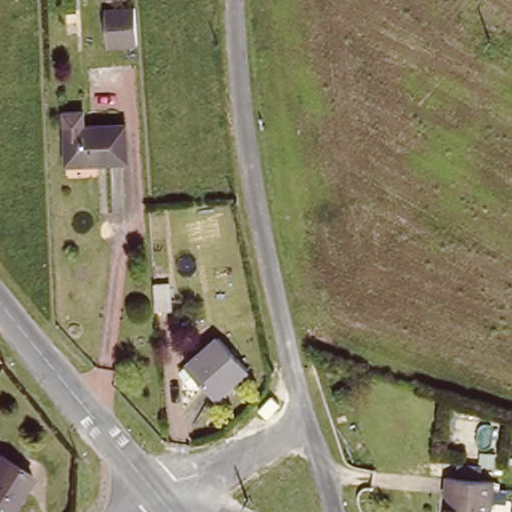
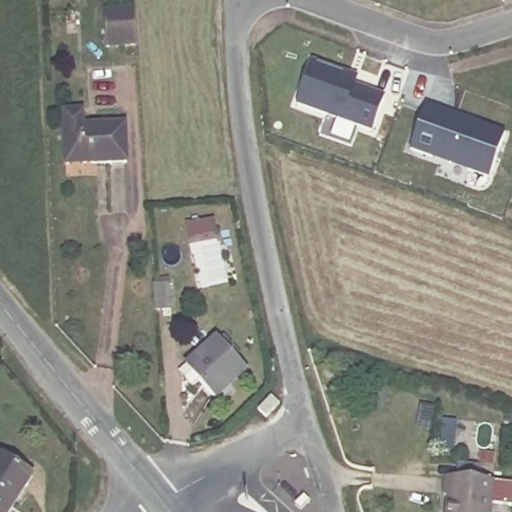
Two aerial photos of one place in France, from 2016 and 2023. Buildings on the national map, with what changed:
unchanged [(110,24),(108,0),(139,0),(141,22),(110,24)]
new [(313,66),(359,81),(358,85),(387,95),(373,132),(299,105),(313,66)]
new [(411,151),(427,106),(434,108),(440,104),(479,116),(482,123),(507,131),(490,180),(411,151)]
unchanged [(131,162),(72,165),(70,131),(128,128),(131,162)]
unchanged [(155,263),(168,263),(169,290),(156,290),(155,263)]
unchanged [(221,341),(249,371),(219,400),(191,370),(221,341)]
unchanged [(14,512),(0,512),(0,461),(3,455),(38,478),(14,512)]
unchanged [(449,495),(452,476),(496,481),(493,512),(451,512),(453,495),(449,495)]
new [(285,483),(296,495),(291,500),(281,488),(285,483)]
new [(303,494),(308,499),(299,508),(294,503),(303,494)]

